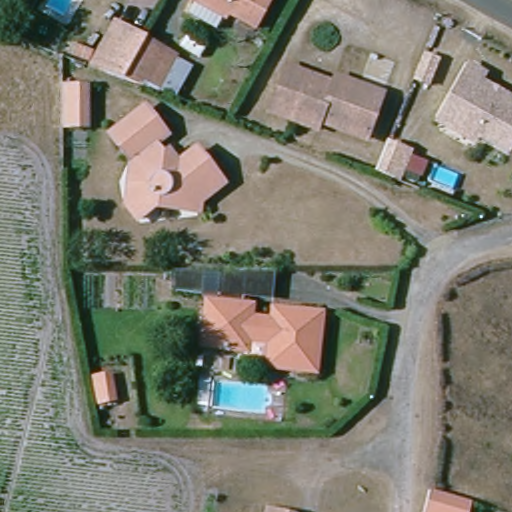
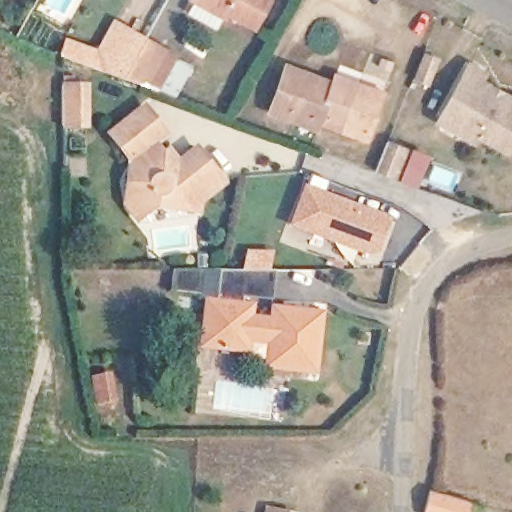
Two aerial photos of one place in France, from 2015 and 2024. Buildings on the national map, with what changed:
unchanged [(186,19),(193,6),(189,4),(191,0),(266,0),(250,31),(223,16),(220,21),(213,33),(186,19)]
unchanged [(99,72),(87,68),(112,22),(123,28),(142,39),(120,80),(99,72)]
unchanged [(170,98),(153,92),(120,80),(142,39),(173,56),(172,59),(187,67),(170,98)]
unchanged [(430,85),(417,80),(426,56),(439,61),(430,85)]
unchanged [(451,111),(476,66),(491,74),(487,82),(512,95),(512,150),(485,136),(483,140),(479,149),(442,129),(451,111)]
unchanged [(271,114),(273,107),(288,67),(335,84),(338,77),(385,94),(382,101),(368,141),(320,124),(318,131),(271,114)]
unchanged [(89,127),(64,127),(64,88),(89,87),(89,127)]
unchanged [(156,145),(167,159),(172,154),(179,163),(197,149),(225,184),(201,203),(200,212),(156,207),(139,220),(128,205),(132,162),(113,137),(147,110),(168,136),(156,145)]
unchanged [(400,180),(381,173),(393,145),(411,153),(400,180)]
new [(313,177),(331,184),(326,198),(390,222),(379,252),(356,251),(294,228),(313,177)]
unchanged [(206,295),(175,291),(177,271),(208,271),(206,295)]
unchanged [(243,350),(200,345),(205,303),(212,304),(215,271),(272,271),(269,300),(235,296),(234,306),(247,307),(246,320),(270,323),(271,311),(317,316),(311,370),(265,365),(266,361),(242,359),(243,350)]
unchanged [(426,512),(432,490),(471,502),(467,512),(426,512)]

